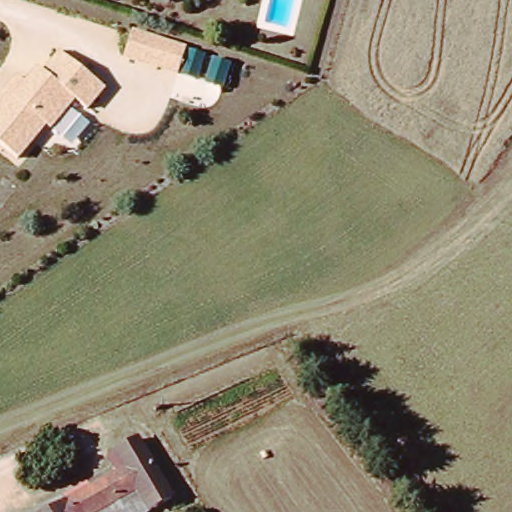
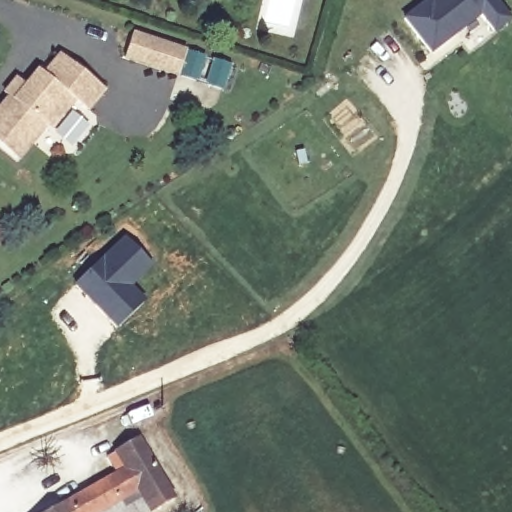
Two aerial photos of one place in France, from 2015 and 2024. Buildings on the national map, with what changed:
new [(430,54),(403,18),(428,0),(429,0),(430,2),(433,0),(491,0),(508,21),(492,34),(479,16),(455,35),(430,54)]
unchanged [(122,59),(130,30),(186,48),(177,78),(122,59)]
unchanged [(0,96),(0,94),(14,77),(22,83),(34,69),(41,75),(58,54),(105,89),(87,113),(74,104),(51,132),(45,128),(19,161),(0,148),(0,103),(4,99),(0,96)]
new [(126,237),(152,264),(130,285),(145,301),(119,328),(77,284),(126,237)]
unchanged [(107,445),(127,431),(164,484),(142,499),(129,480),(80,512),(46,512),(119,464),(107,445)]
unchanged [(152,512),(80,512),(129,480),(142,499),(164,484),(172,499),(152,512)]

